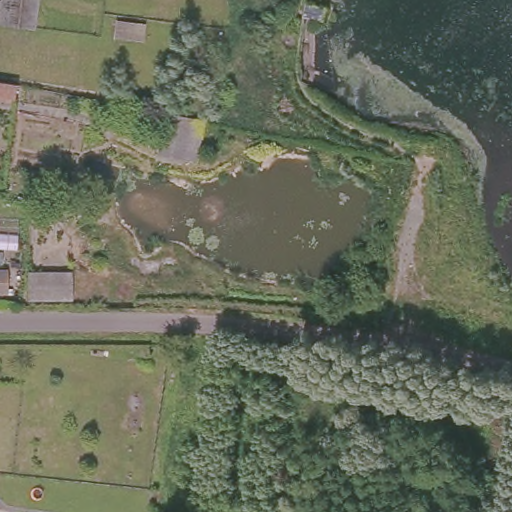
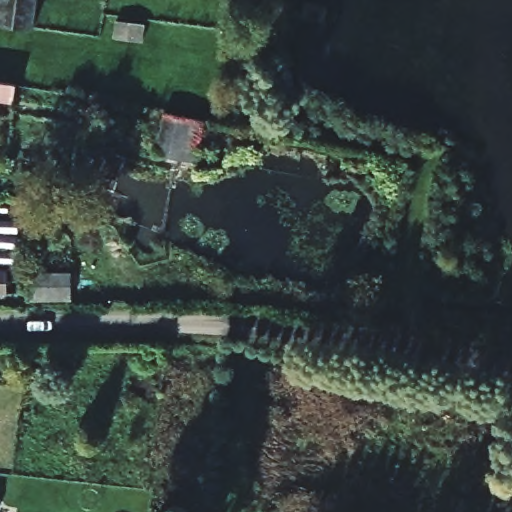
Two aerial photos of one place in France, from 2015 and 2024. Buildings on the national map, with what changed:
unchanged [(3,0),(40,0),(36,27),(10,24),(0,23),(0,0),(2,0),(3,0)]
unchanged [(9,102),(0,101),(0,84),(12,85),(9,102)]
unchanged [(200,121),(191,162),(155,155),(163,114),(200,121)]
unchanged [(26,303),(25,270),(74,269),(75,302),(26,303)]
unchanged [(0,512),(0,511),(5,512),(0,512)]

